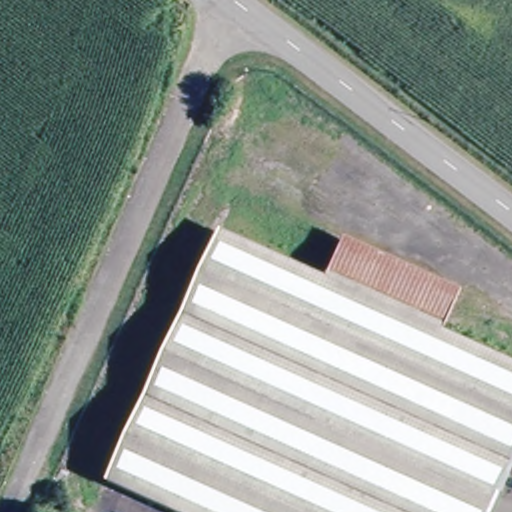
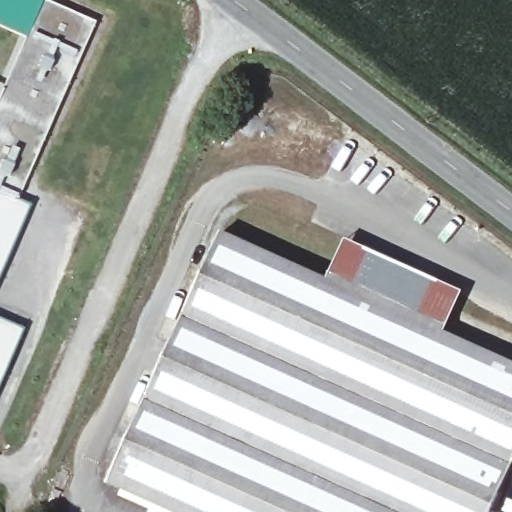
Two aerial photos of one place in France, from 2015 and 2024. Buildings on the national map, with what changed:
new [(28,37),(0,25),(0,0),(46,0),(95,22),(17,201),(30,206),(0,273),(0,101),(28,37)]
unchanged [(186,512),(108,477),(219,228),(328,277),(346,237),(367,247),(444,281),(459,287),(442,325),(512,356),(512,463),(491,512),(186,512)]
new [(24,329),(0,383),(0,319),(24,329)]

